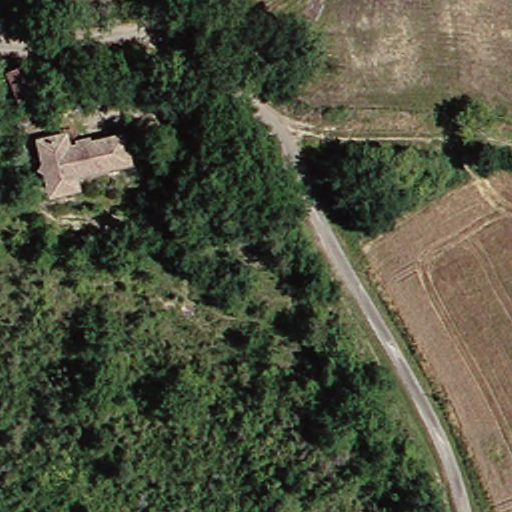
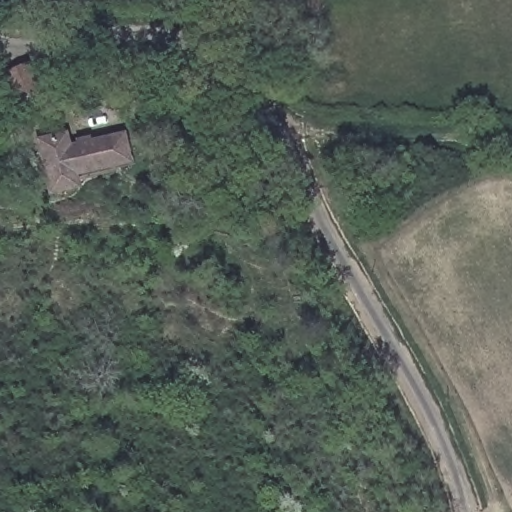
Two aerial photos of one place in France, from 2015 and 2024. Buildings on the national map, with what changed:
unchanged [(90,159),(81,162),(85,176),(59,182),(55,166),(48,163),(52,155),(46,135),(73,128),(77,141),(86,139),(85,135),(98,131),(99,135),(118,130),(129,127),(135,152),(124,155),(91,164),(90,159)]

